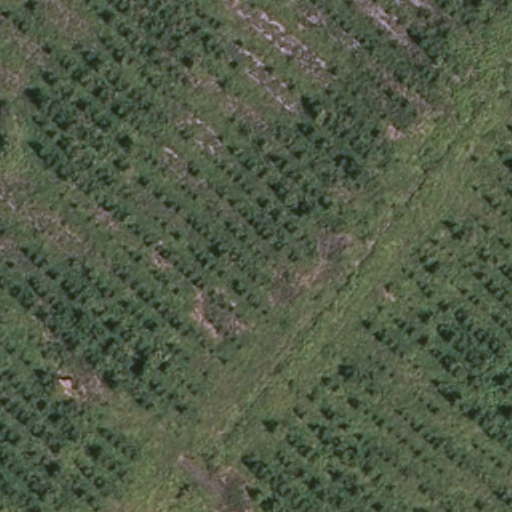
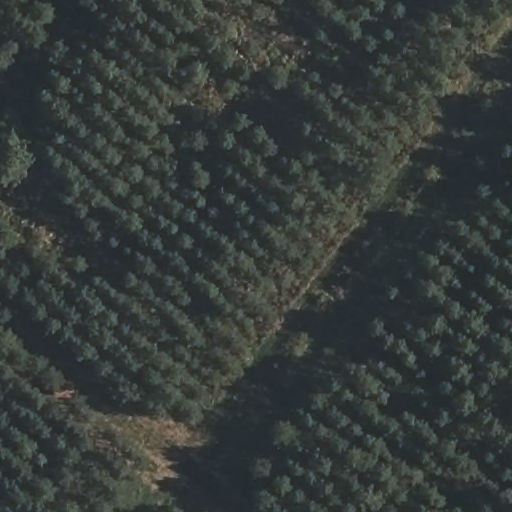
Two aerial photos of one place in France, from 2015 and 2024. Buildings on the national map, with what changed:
unchanged [(56,395),(57,381),(75,382),(72,396),(56,395)]

